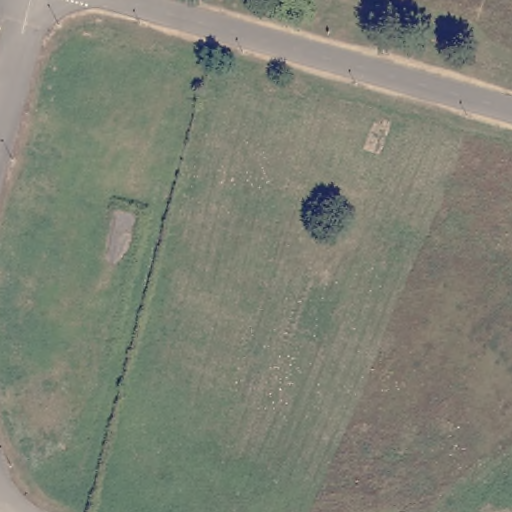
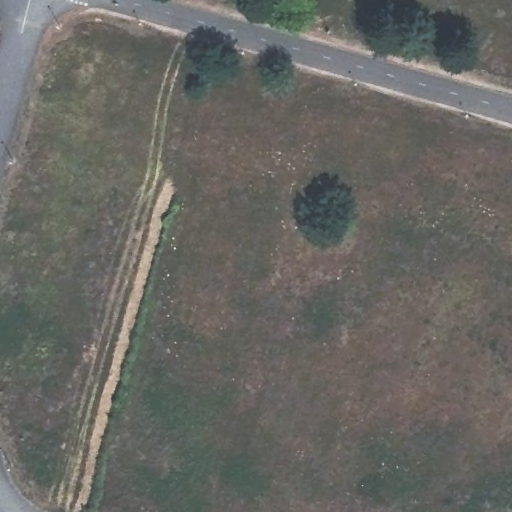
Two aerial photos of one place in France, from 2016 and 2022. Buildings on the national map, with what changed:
[]

